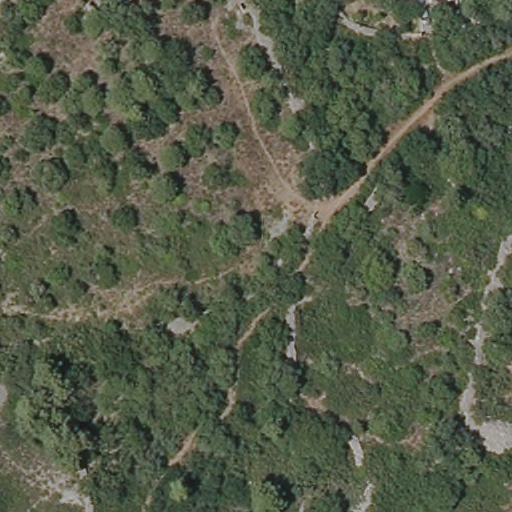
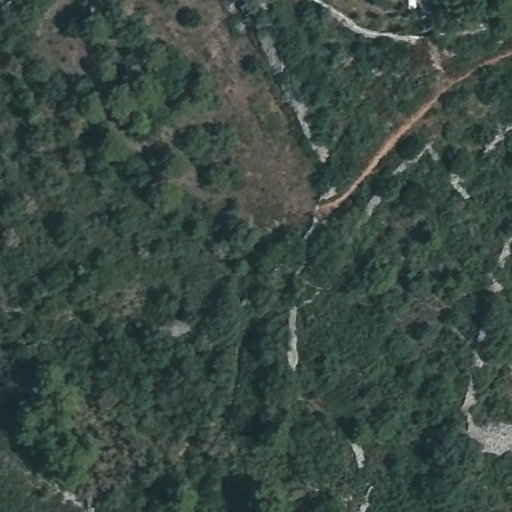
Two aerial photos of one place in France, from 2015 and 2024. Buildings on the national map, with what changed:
[]

